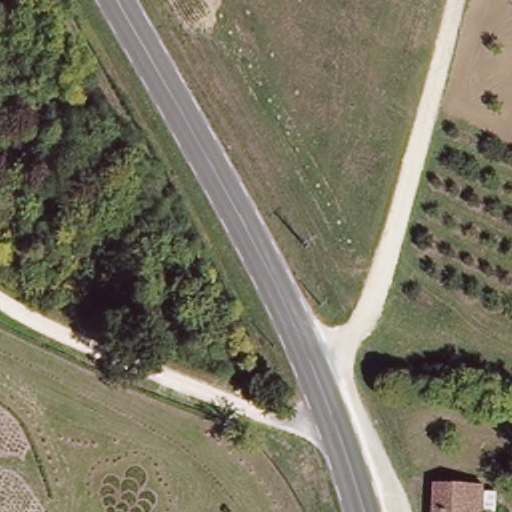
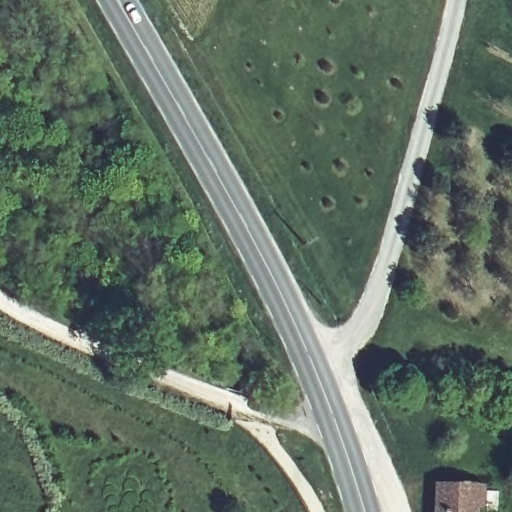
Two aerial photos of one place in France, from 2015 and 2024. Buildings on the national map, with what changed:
unchanged [(485,486),(483,512),(436,512),(438,483),(485,486)]

